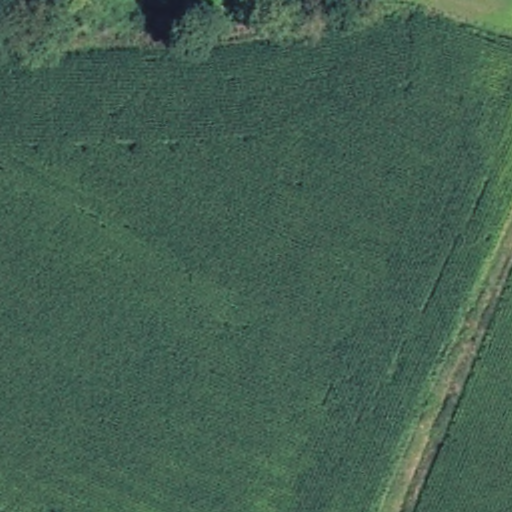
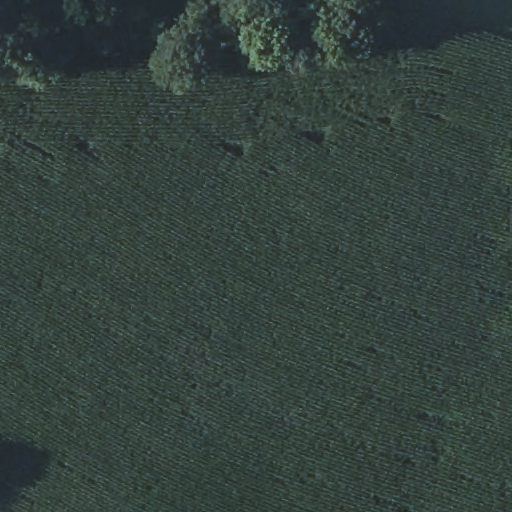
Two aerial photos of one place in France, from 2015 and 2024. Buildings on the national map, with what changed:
[]

